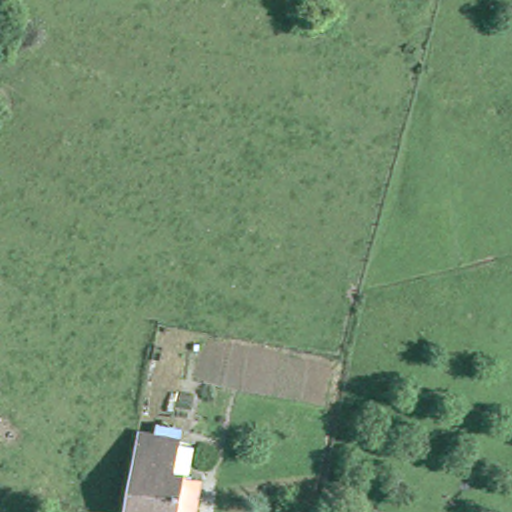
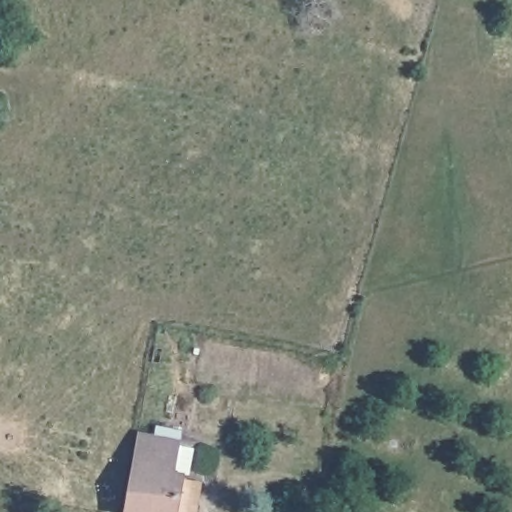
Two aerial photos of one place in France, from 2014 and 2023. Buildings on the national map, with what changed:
unchanged [(201,480),(196,512),(123,512),(132,433),(155,437),(157,425),(182,428),(180,440),(193,442),(190,465),(183,471),(183,475),(187,475),(187,478),(201,480)]

